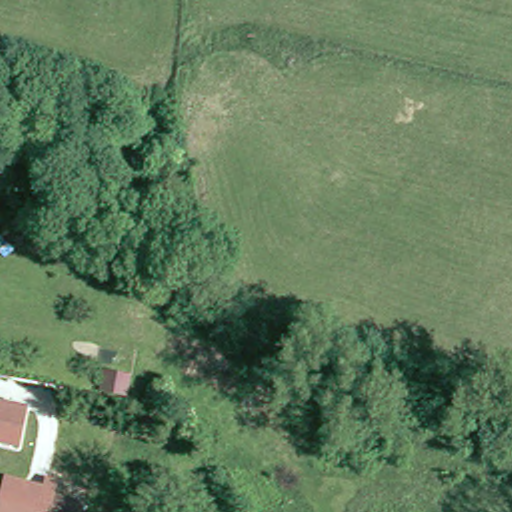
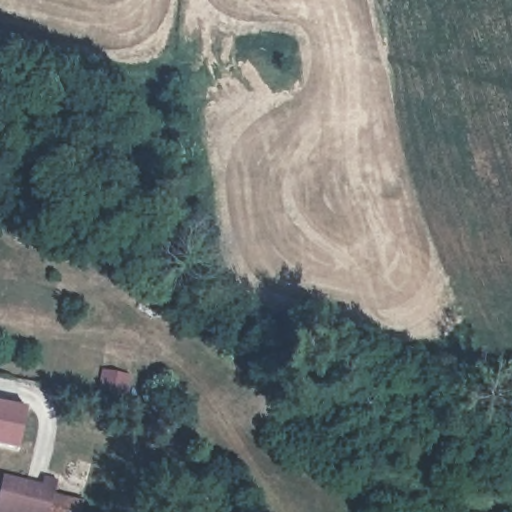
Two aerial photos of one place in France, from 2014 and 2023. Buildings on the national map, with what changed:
unchanged [(165,292),(175,294),(172,304),(162,301),(165,292)]
unchanged [(104,364),(129,370),(119,414),(93,408),(104,364)]
unchanged [(26,408),(18,450),(0,446),(0,402),(26,408)]
unchanged [(152,425),(133,422),(137,406),(155,410),(152,425)]
unchanged [(0,512),(0,486),(2,474),(45,483),(43,492),(50,494),(82,501),(79,512),(0,512)]

